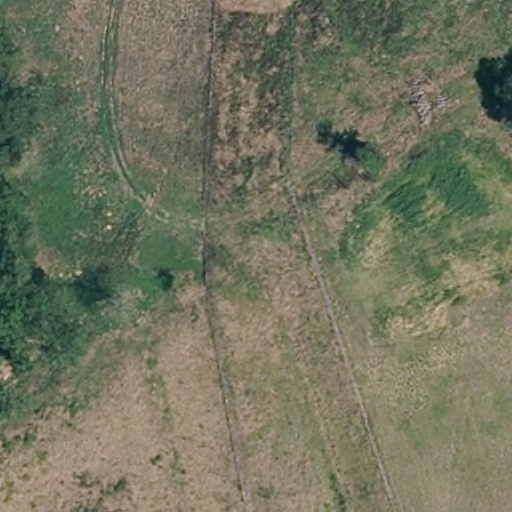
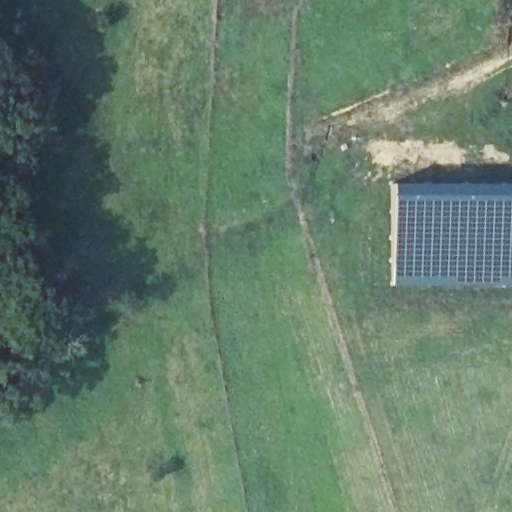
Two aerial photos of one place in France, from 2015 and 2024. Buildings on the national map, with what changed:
demolished [(493,137),(512,129),(512,183),(508,184),(493,137)]
demolished [(440,169),(461,158),(479,203),(456,212),(440,169)]
new [(391,184),(441,183),(441,189),(483,189),(486,187),(486,184),(512,184),(512,287),(447,288),(389,286),(391,184)]
demolished [(388,198),(414,187),(429,230),(410,239),(388,198)]
demolished [(336,224),(359,213),(381,255),(359,268),(336,224)]
demolished [(464,241),(486,233),(505,277),(482,285),(464,241)]
demolished [(417,271),(434,263),(456,304),(437,314),(417,271)]
demolished [(368,298),(387,289),(408,332),(386,340),(368,298)]

